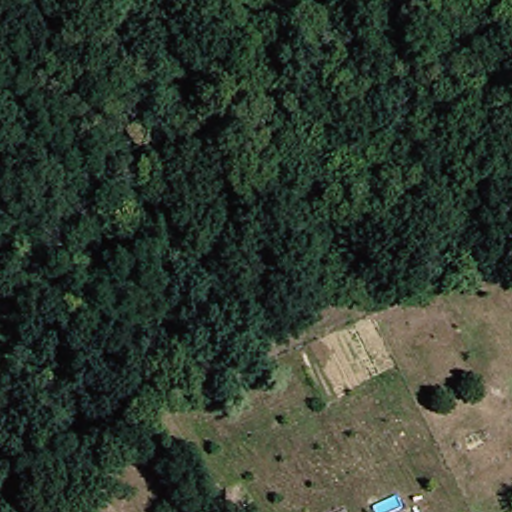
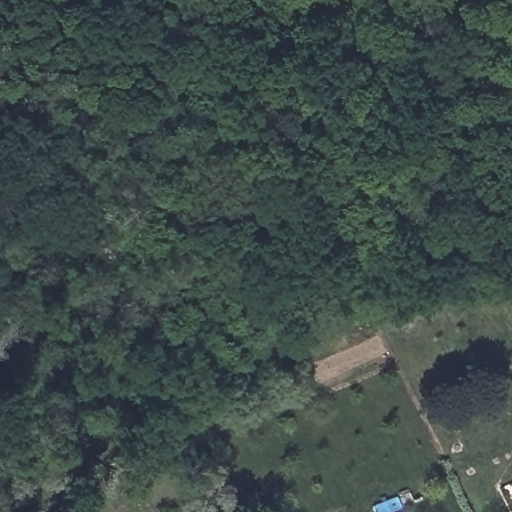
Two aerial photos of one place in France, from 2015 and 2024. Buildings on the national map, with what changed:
unchanged [(504,217),(498,200),(512,193),(512,214),(504,217)]

